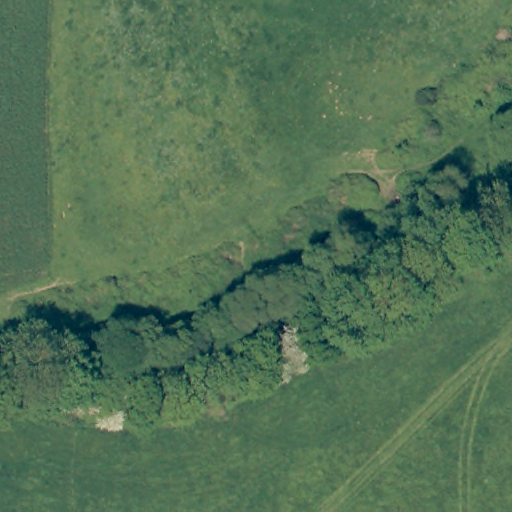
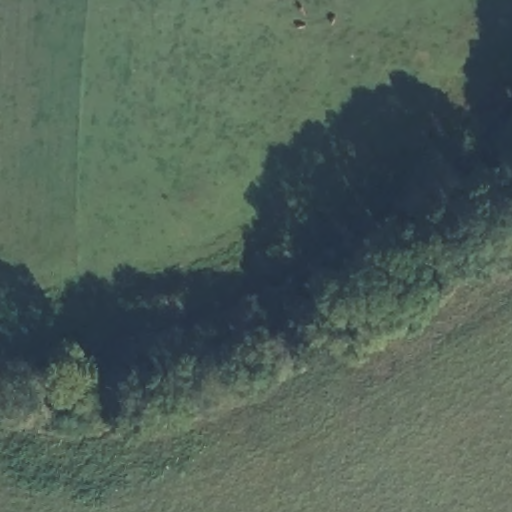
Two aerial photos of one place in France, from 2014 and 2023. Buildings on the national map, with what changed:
[]

